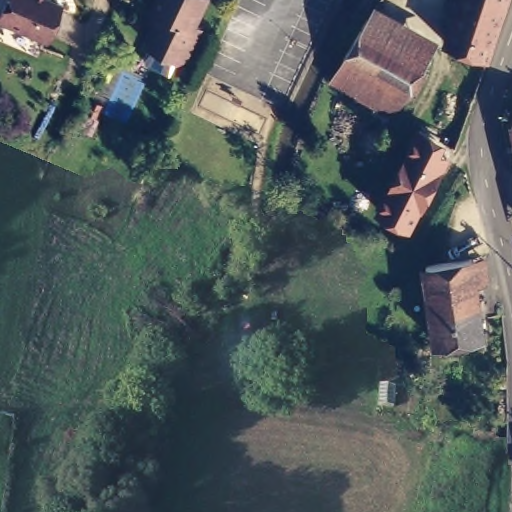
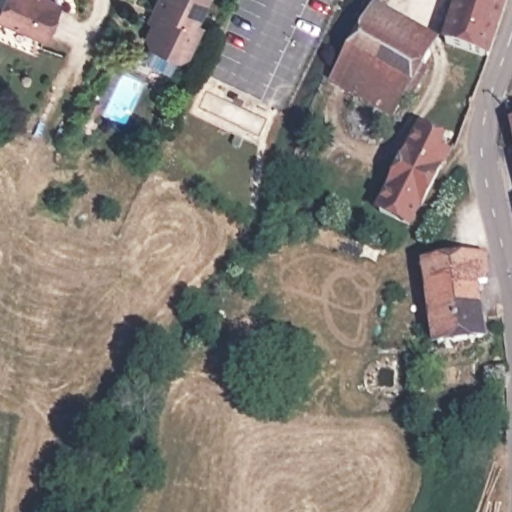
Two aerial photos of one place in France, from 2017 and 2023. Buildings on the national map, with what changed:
unchanged [(0,7),(3,0),(30,0),(53,9),(38,44),(0,28),(0,7)]
unchanged [(172,69),(145,56),(141,47),(148,32),(144,30),(150,19),(148,18),(157,0),(193,0),(203,4),(188,35),(194,38),(181,65),(172,69)]
unchanged [(439,48),(455,0),(504,0),(483,63),(439,48)]
unchanged [(411,90),(405,86),(393,108),(330,70),(367,8),(429,45),(422,59),(427,62),(411,90)]
unchanged [(507,128),(512,126),(512,150),(507,128)]
unchanged [(409,134),(432,145),(421,165),(431,170),(398,228),(368,214),(409,134)]
unchanged [(421,269),(467,263),(479,343),(432,349),(421,269)]

